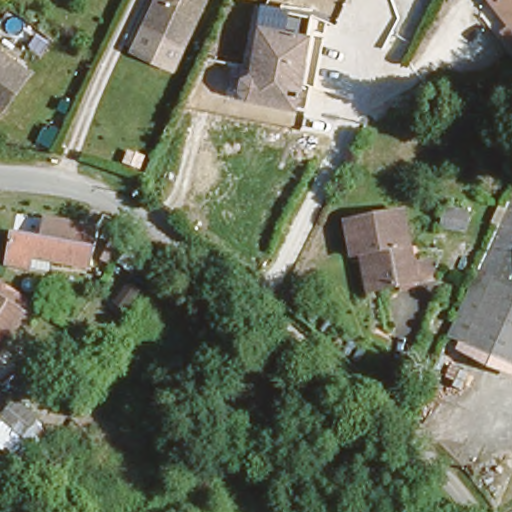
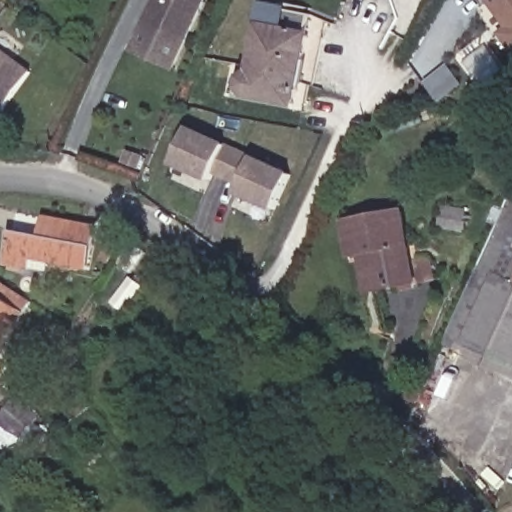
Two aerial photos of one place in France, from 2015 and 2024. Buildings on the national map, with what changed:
unchanged [(140,23),(151,0),(199,0),(180,41),(140,23)]
unchanged [(235,85),(240,60),(248,61),(260,0),(285,0),(307,4),(290,95),(235,85)]
unchanged [(504,23),(488,3),(486,0),(512,0),(512,49),(496,29),(504,23)]
unchanged [(26,68),(0,105),(0,48),(26,68)]
new [(448,68),(459,85),(436,100),(425,83),(448,68)]
unchanged [(51,149),(38,143),(45,126),(59,133),(51,149)]
new [(172,166),(189,126),(294,174),(276,212),(238,195),(241,188),(213,175),(210,183),(172,166)]
unchanged [(482,268),(512,203),(512,281),(492,273),(482,268)]
unchanged [(361,250),(352,252),(345,217),(403,207),(413,257),(432,253),(437,275),(417,279),(378,286),(369,288),(361,250)]
unchanged [(463,229),(443,226),(446,211),(466,214),(463,229)]
unchanged [(78,264),(20,253),(19,264),(0,260),(0,242),(3,227),(3,226),(31,232),(34,213),(86,223),(78,264)]
unchanged [(98,258),(89,253),(100,235),(109,240),(98,258)]
unchanged [(121,268),(106,258),(121,237),(136,248),(121,268)]
unchanged [(482,268),(492,273),(512,281),(512,366),(449,337),(482,268)]
unchanged [(0,344),(0,286),(5,289),(26,303),(0,344)]
unchanged [(418,405),(407,400),(412,389),(422,395),(418,405)]
unchanged [(75,418),(59,406),(73,395),(87,408),(75,418)]
unchanged [(5,453),(0,448),(0,416),(16,398),(38,417),(5,453)]

